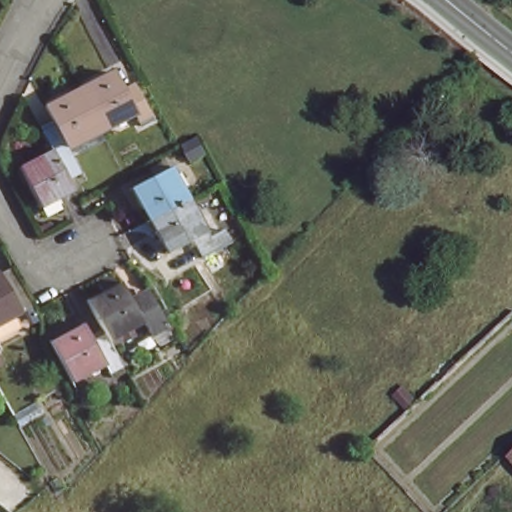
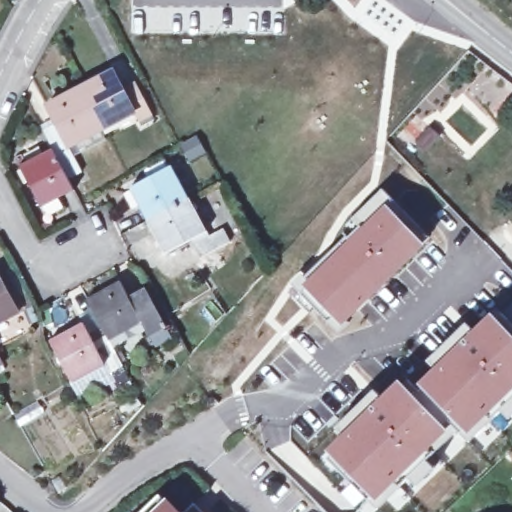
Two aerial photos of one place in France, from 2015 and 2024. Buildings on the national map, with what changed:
unchanged [(81,92),(112,75),(122,92),(134,85),(152,117),(139,124),(135,116),(103,132),(81,92)]
unchanged [(43,134),(58,126),(49,109),(81,92),(103,132),(70,149),(74,159),(60,166),(52,150),(43,134)]
unchanged [(200,142),(208,157),(195,164),(187,149),(200,142)]
unchanged [(60,166),(72,189),(37,208),(17,168),(52,150),(60,166)]
unchanged [(156,221),(140,189),(173,172),(190,203),(156,221)]
new [(346,318),(350,323),(339,335),(291,285),(302,275),(304,277),(347,233),(343,228),(383,190),(430,239),(346,318)]
unchanged [(206,233),(172,251),(156,221),(190,203),(206,233)]
unchanged [(0,315),(0,275),(16,307),(0,315)]
unchanged [(87,297),(120,280),(129,297),(143,290),(160,320),(146,327),(139,315),(106,332),(87,297)]
new [(509,420),(502,412),(469,442),(459,431),(427,461),(435,471),(417,486),(410,479),(376,511),(369,502),(360,510),(333,483),(342,473),(328,457),(336,450),(348,438),(338,428),(374,391),(385,402),(401,387),(408,381),(411,384),(430,365),(426,361),(466,323),(471,328),(487,313),(494,319),(500,313),(512,325),(512,417),(509,420)]
unchanged [(123,365),(110,371),(101,355),(67,372),(50,338),(82,321),(92,340),(106,332),(123,365)]
unchanged [(507,457),(512,452),(512,463),(507,457)]
new [(173,512),(141,512),(157,497),(173,512)]
new [(191,506),(198,512),(185,512),(191,506)]

